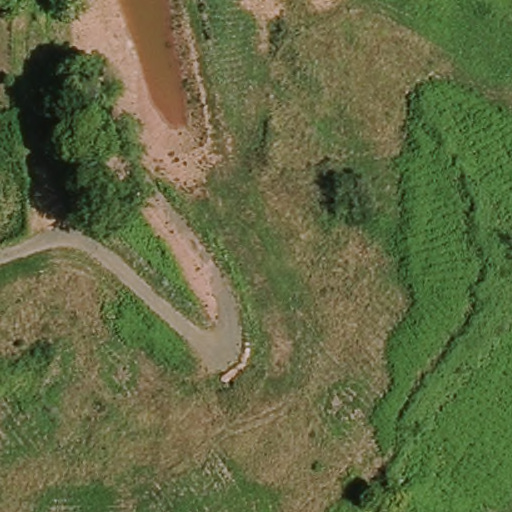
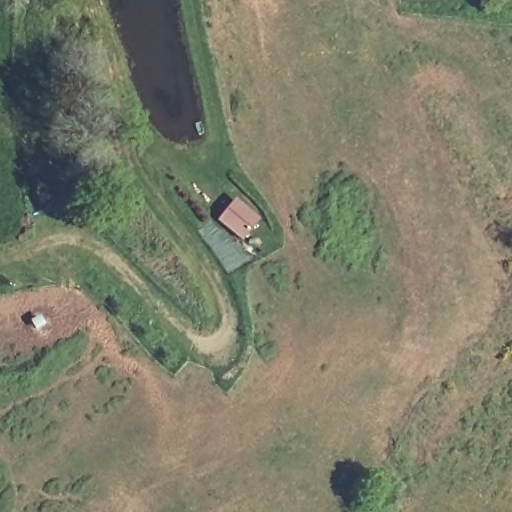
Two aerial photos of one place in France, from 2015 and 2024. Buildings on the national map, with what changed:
new [(243,241),(217,220),(236,199),(260,222),(243,241)]

